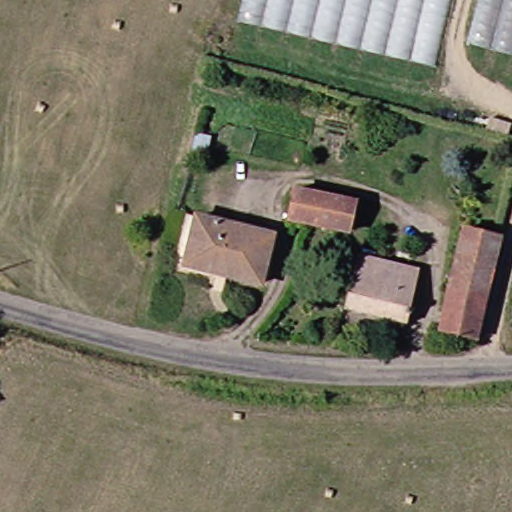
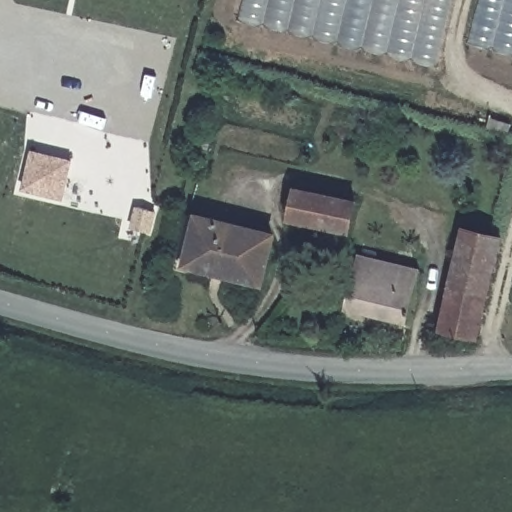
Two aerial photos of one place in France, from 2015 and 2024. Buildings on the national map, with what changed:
unchanged [(246,0),(451,0),(435,65),(241,19),(246,0)]
unchanged [(512,0),(512,52),(470,41),(481,0),(512,0)]
unchanged [(499,130),(478,125),(481,114),(502,120),(499,130)]
new [(32,150),(72,160),(64,200),(22,190),(32,150)]
unchanged [(300,192),(360,205),(354,231),(305,220),(294,218),(300,192)]
new [(152,234),(129,228),(135,206),(157,212),(152,234)]
unchanged [(225,265),(223,273),(176,260),(188,207),(270,227),(260,272),(225,265)]
unchanged [(445,327),(466,230),(506,239),(484,335),(445,327)]
unchanged [(345,315),(357,266),(367,269),(370,255),(384,258),(394,260),(418,266),(405,329),(345,315)]

